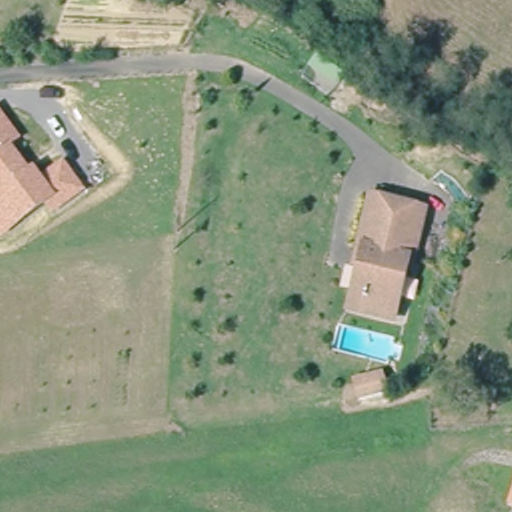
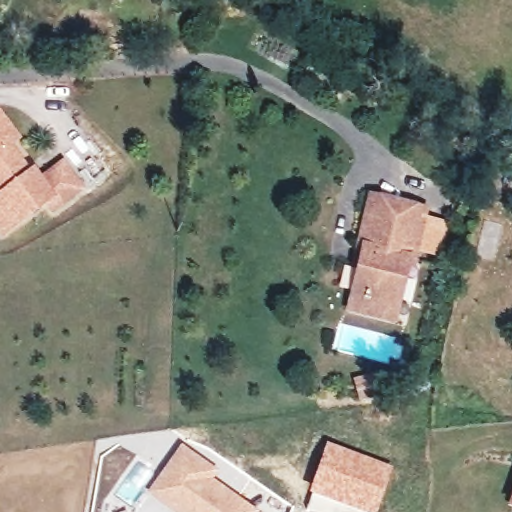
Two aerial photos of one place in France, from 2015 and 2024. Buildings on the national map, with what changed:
unchanged [(29,170),(34,166),(40,175),(64,160),(85,189),(52,214),(44,205),(1,238),(0,237),(0,109),(21,140),(11,145),(29,170)]
unchanged [(353,305),(356,290),(363,244),(359,242),(367,191),(421,198),(413,250),(406,250),(399,295),(396,310),(353,305)]
unchanged [(362,403),(356,381),(380,375),(387,395),(362,403)]
new [(213,480),(259,511),(259,512),(171,512),(146,494),(181,444),(218,470),(213,480)]
new [(372,512),(362,512),(313,495),(328,449),(386,469),(372,512)]

